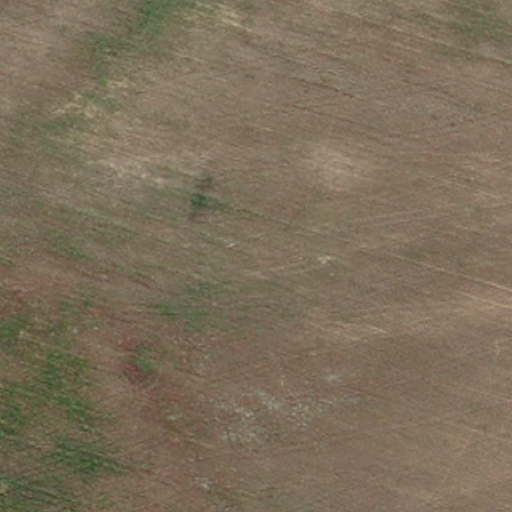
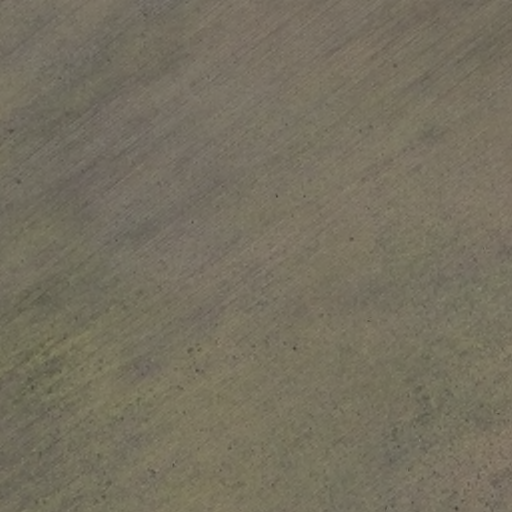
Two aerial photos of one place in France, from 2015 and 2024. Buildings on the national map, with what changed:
[]

